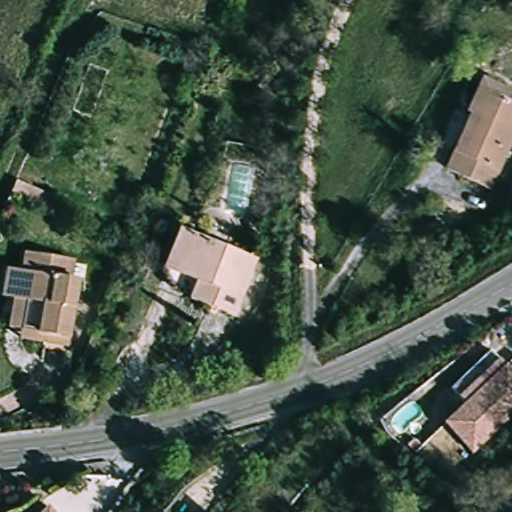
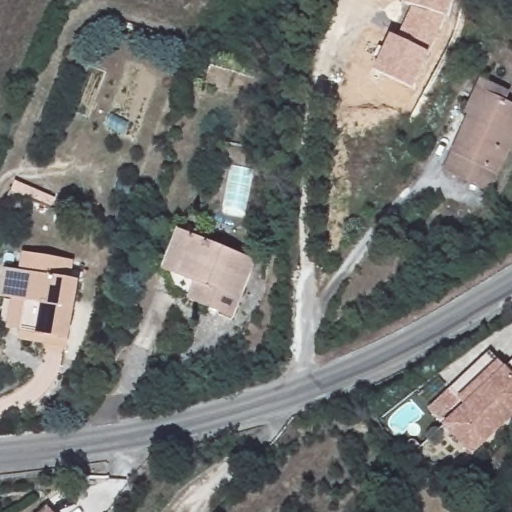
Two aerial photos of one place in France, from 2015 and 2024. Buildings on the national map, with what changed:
new [(412,87),(375,70),(390,34),(399,38),(413,5),(405,3),(406,0),(451,0),(447,15),(427,51),(412,87)]
unchanged [(466,114),(480,81),(507,93),(504,102),(512,106),(512,137),(489,189),(445,170),(470,115),(466,114)]
unchanged [(164,269),(179,232),(253,261),(232,316),(188,299),(170,292),(164,269)]
unchanged [(15,331),(3,329),(8,300),(3,299),(0,299),(0,272),(1,269),(8,270),(15,272),(18,254),(67,262),(64,280),(72,281),(61,348),(37,344),(14,340),(15,331)]
unchanged [(512,417),(477,454),(447,426),(467,405),(450,390),(490,349),(512,371),(512,417)]
unchanged [(50,512),(42,512),(47,508),(50,512)]

